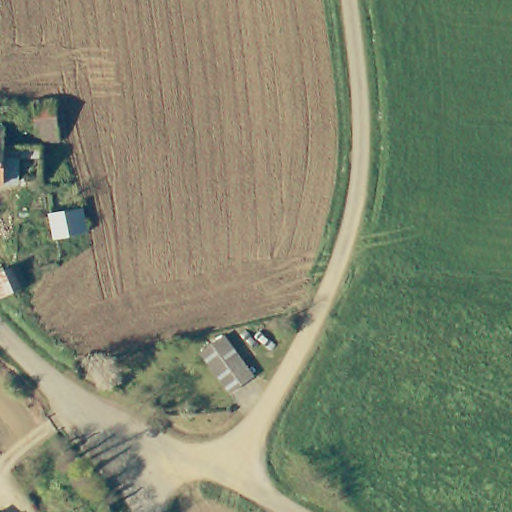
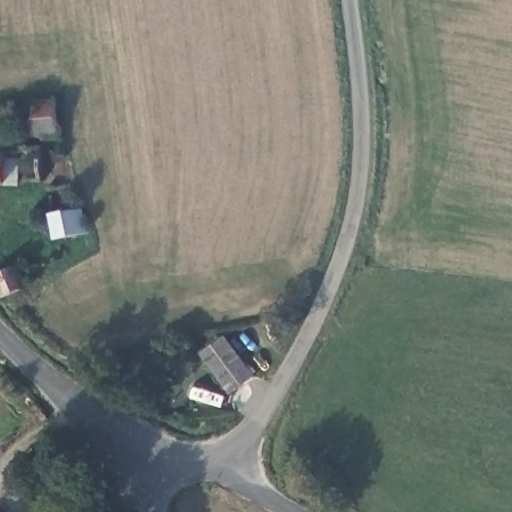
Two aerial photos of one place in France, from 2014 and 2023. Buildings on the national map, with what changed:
unchanged [(49,144),(38,139),(32,106),(51,102),(60,142),(49,144)]
unchanged [(1,129),(0,146),(0,130),(1,129)]
unchanged [(16,181),(0,181),(0,146),(16,146),(16,181)]
unchanged [(52,237),(50,213),(81,208),(85,231),(52,237)]
unchanged [(17,266),(23,286),(0,296),(0,272),(17,266)]
unchanged [(256,377),(229,396),(197,354),(223,333),(256,377)]

